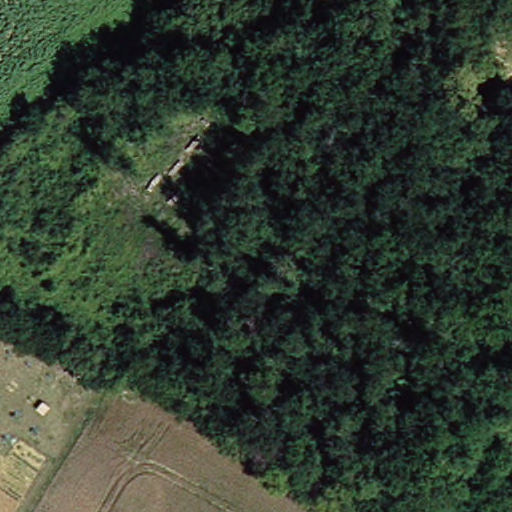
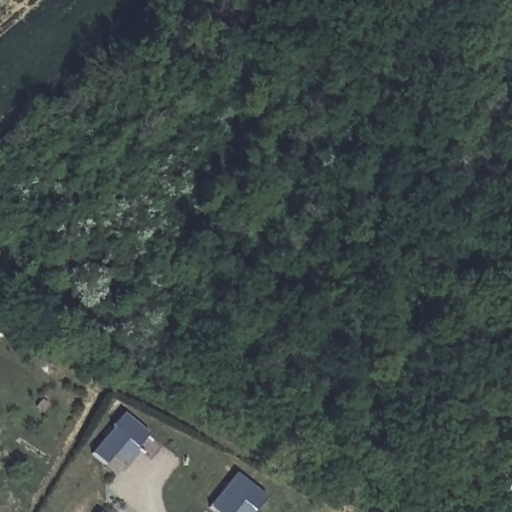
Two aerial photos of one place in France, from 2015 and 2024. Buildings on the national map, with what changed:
new [(108,432),(107,431),(119,417),(144,438),(133,452),(123,443),(101,468),(88,457),(108,432)]
new [(232,476),(262,501),(253,512),(248,512),(238,504),(232,512),(207,512),(205,510),(232,476)]

